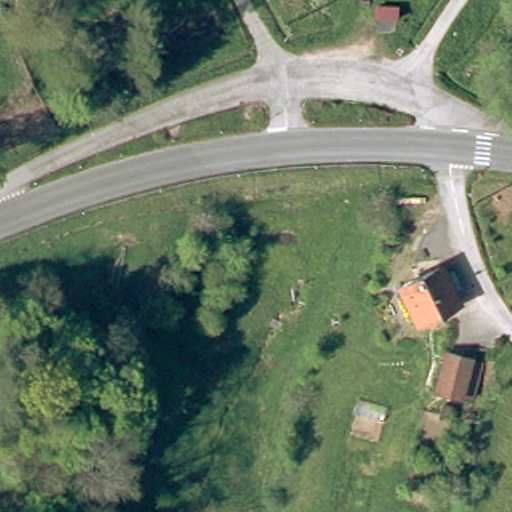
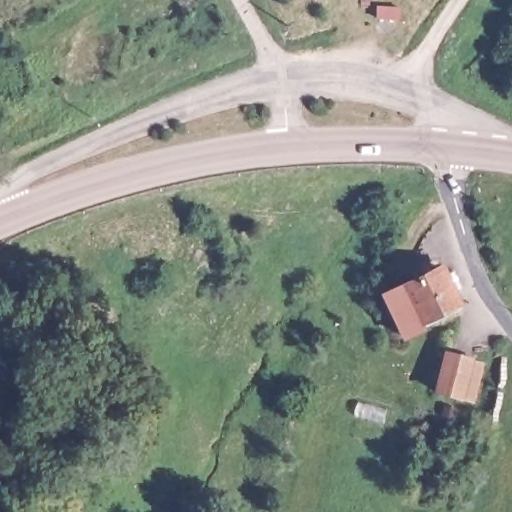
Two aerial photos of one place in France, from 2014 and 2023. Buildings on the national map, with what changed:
unchanged [(380,5),(397,6),(397,16),(380,16),(380,5)]
unchanged [(407,322),(390,285),(430,265),(435,274),(444,270),(450,285),(442,290),(449,303),(407,322)]
unchanged [(469,393),(456,389),(455,392),(431,385),(441,348),(465,354),(477,358),(469,393)]

